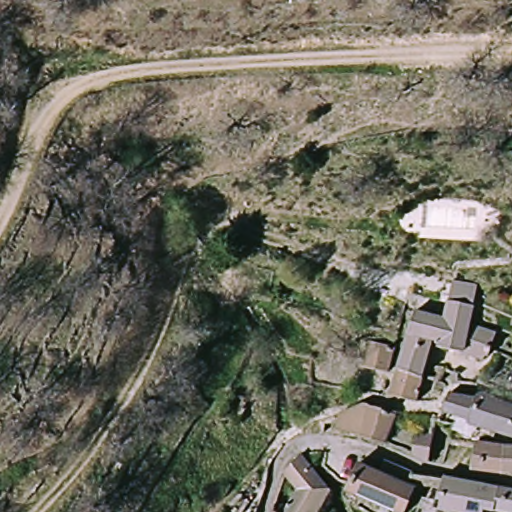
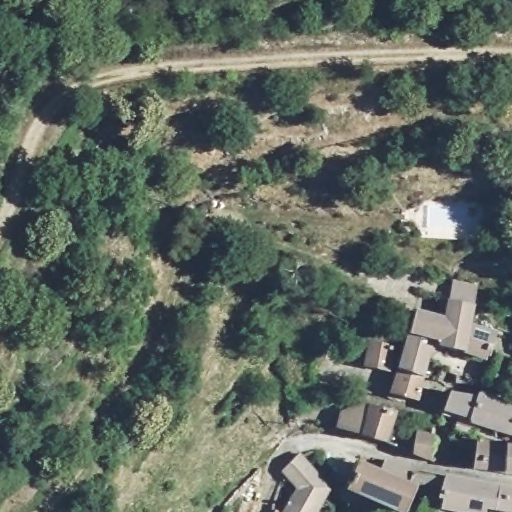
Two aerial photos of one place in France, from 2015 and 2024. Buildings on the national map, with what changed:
unchanged [(410,336),(419,310),(443,317),(448,304),(449,301),(450,300),(450,297),(451,297),(455,279),(478,285),(477,287),(477,289),(475,299),(473,304),(466,325),(490,333),(485,352),(483,358),(459,349),(433,340),(422,376),(415,398),(392,392),(400,369),(410,336)]
unchanged [(366,365),(375,338),(400,345),(391,371),(366,365)]
unchanged [(480,430),(478,425),(451,420),(452,415),(453,401),(477,407),(480,404),(492,409),(512,413),(512,435),(480,430)]
unchanged [(383,446),(360,439),(334,429),(339,410),(370,403),(394,406),(383,446)]
unchanged [(412,456),(419,428),(433,431),(427,459),(412,456)]
unchanged [(500,475),(476,472),(480,441),(505,443),(512,443),(512,476),(500,475)]
unchanged [(297,484),(280,471),(292,455),(317,475),(325,481),(305,512),(265,512),(270,497),(285,505),(297,484)]
unchanged [(406,484),(414,488),(403,511),(345,485),(357,462),(381,473),(384,466),(387,460),(398,465),(412,470),(406,484)]
unchanged [(508,512),(492,509),(467,502),(456,500),(455,504),(445,502),(436,500),(444,470),(474,477),(499,483),(512,486),(512,512),(508,512)]

